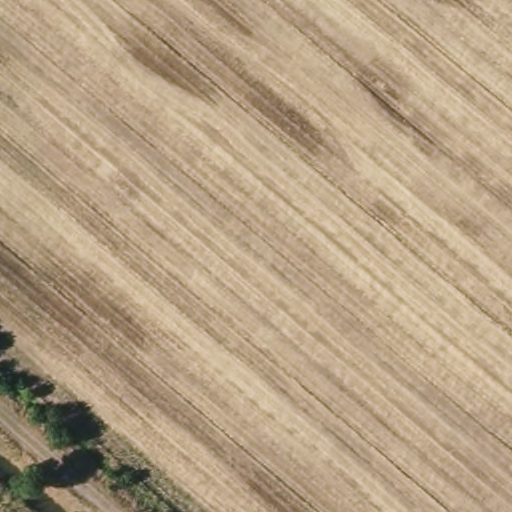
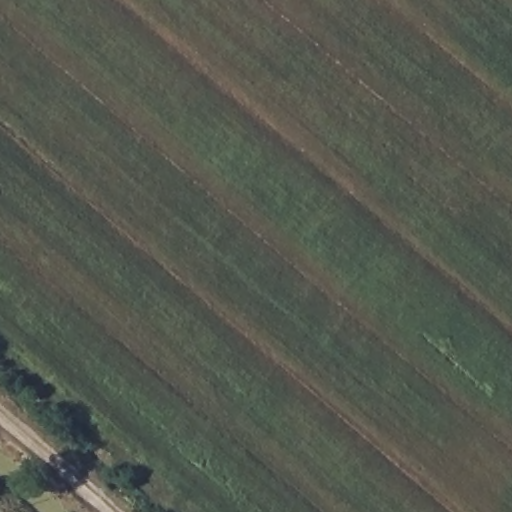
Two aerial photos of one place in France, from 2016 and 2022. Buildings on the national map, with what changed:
[]

